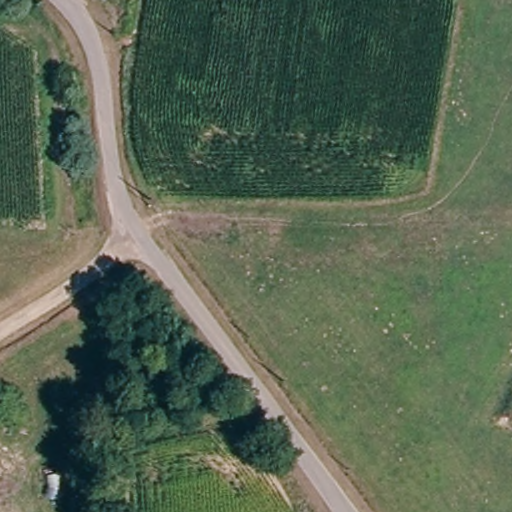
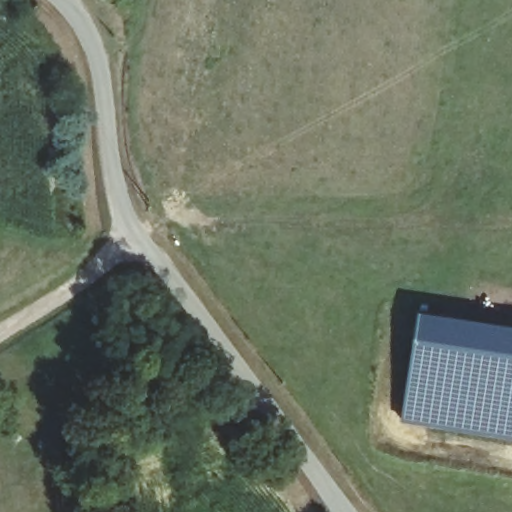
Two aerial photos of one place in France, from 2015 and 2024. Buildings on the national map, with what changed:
unchanged [(115,3),(110,9),(100,3),(102,0),(110,0),(115,3)]
new [(420,311),(512,326),(512,439),(401,422),(420,311)]

